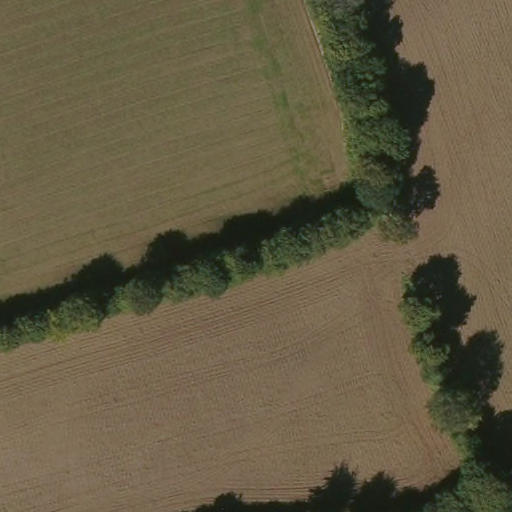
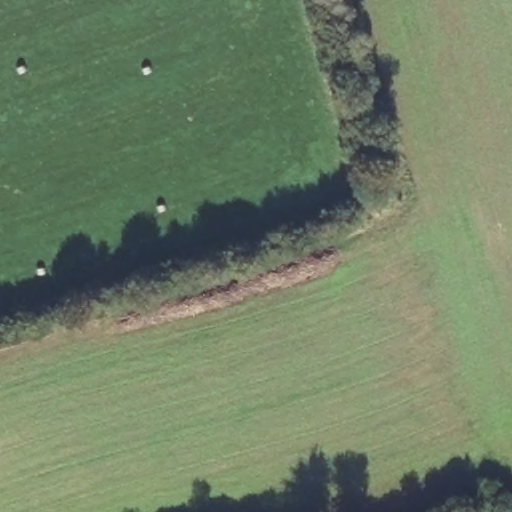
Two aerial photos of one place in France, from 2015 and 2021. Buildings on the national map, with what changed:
[]

